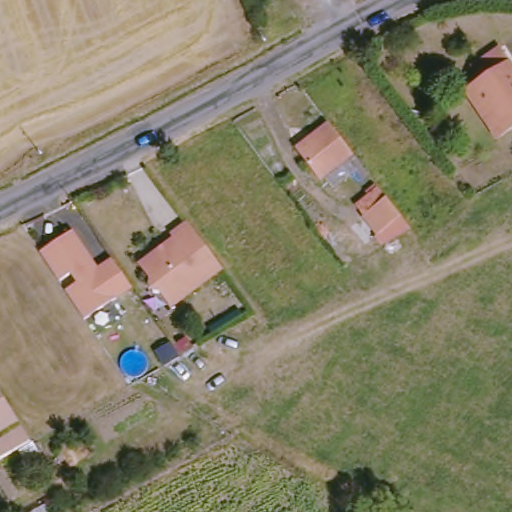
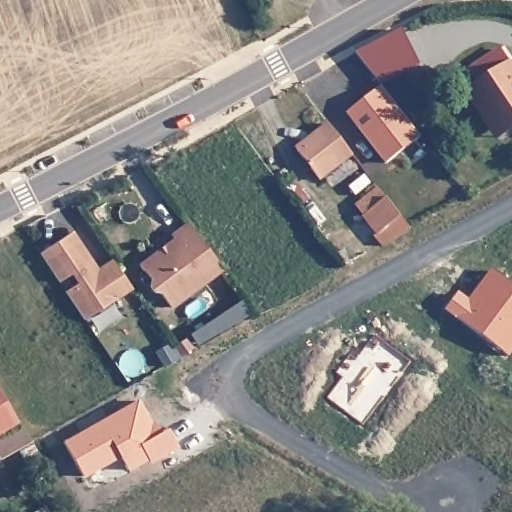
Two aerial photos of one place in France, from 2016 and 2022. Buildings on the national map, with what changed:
new [(381,87),(357,52),(401,30),(418,65),(381,87)]
unchanged [(473,89),(489,78),(480,64),(506,47),(512,56),(512,129),(503,135),(498,126),(473,89)]
new [(345,114),(381,87),(420,136),(383,165),(345,114)]
unchanged [(318,179),(295,148),(328,124),(333,131),(351,155),(318,179)]
unchanged [(362,215),(354,205),(376,188),(384,199),(397,217),(375,234),(362,215)]
unchanged [(222,270),(172,308),(160,294),(154,292),(150,286),(150,278),(140,265),(172,241),(168,236),(186,224),(222,270)]
unchanged [(134,287),(87,319),(68,291),(81,283),(75,273),(62,281),(62,280),(43,252),(75,231),(94,260),(100,270),(115,260),(134,287)]
new [(467,303),(491,271),(512,287),(512,350),(507,357),(445,310),(457,295),(467,303)]
new [(340,378),(335,374),(348,356),(355,360),(373,335),(409,362),(361,426),(325,399),(340,378)]
new [(153,421),(158,430),(165,427),(175,445),(148,461),(145,457),(126,470),(117,455),(81,475),(62,442),(140,399),(153,421)]
unchanged [(17,427),(0,437),(0,400),(17,427)]
unchanged [(22,436),(30,447),(0,464),(0,449),(22,436)]

